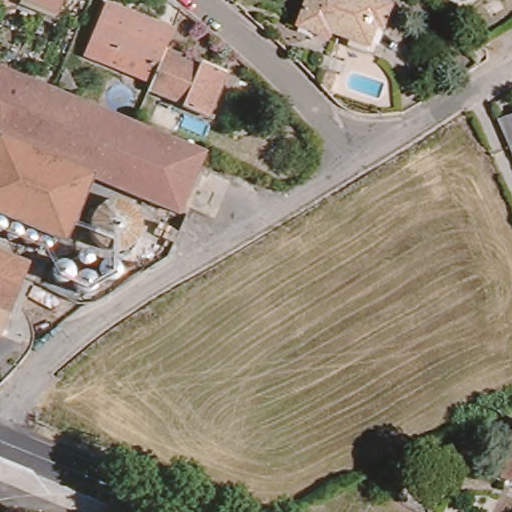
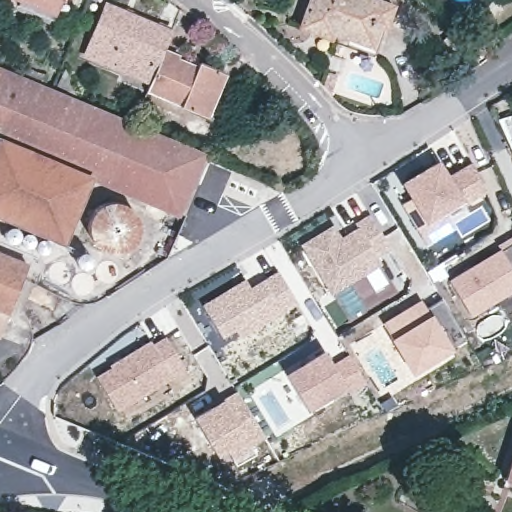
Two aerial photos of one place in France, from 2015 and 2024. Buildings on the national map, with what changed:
unchanged [(51,21),(17,8),(20,0),(59,0),(51,21)]
unchanged [(377,30),(371,29),(363,46),(323,29),(319,35),(310,32),(310,27),(293,20),(302,0),(372,0),(386,6),(377,30)]
unchanged [(103,1),(170,27),(162,47),(154,65),(87,38),(103,1)]
unchanged [(197,113),(176,104),(178,99),(145,87),(154,65),(162,47),(177,53),(177,57),(193,65),(198,60),(224,71),(216,91),(207,116),(197,113)]
unchanged [(177,218),(171,216),(78,176),(53,241),(0,219),(0,71),(89,108),(197,153),(204,156),(177,218)]
new [(436,163),(446,179),(470,164),(483,193),(462,205),(460,200),(425,222),(402,184),(436,163)]
unchanged [(83,215),(86,209),(92,204),(99,200),(110,199),(120,202),(127,207),(134,218),(135,227),(131,239),(125,246),(116,251),(110,252),(102,252),(92,247),(87,242),(83,235),(81,225),(83,215)]
new [(329,228),(337,240),(355,230),(353,225),(367,216),(387,249),(373,256),(378,264),(328,294),(299,246),(329,228)]
new [(48,252),(0,233),(0,219),(53,241),(48,252)]
new [(498,245),(512,237),(512,290),(469,315),(449,281),(494,254),(501,250),(498,245)]
unchanged [(103,281),(99,280),(95,278),(93,272),(93,267),(95,263),(99,260),(103,259),(108,260),(113,264),(114,269),(113,273),(112,277),(108,280),(103,281)]
unchanged [(24,270),(0,327),(0,261),(24,270)]
unchanged [(50,277),(51,273),(51,270),(54,266),(58,264),(63,263),(68,265),(71,269),(72,275),(71,278),(68,283),(63,285),(60,285),(56,283),(52,280),(50,277)]
new [(204,305),(245,278),(249,286),(277,269),(299,304),(242,339),(235,329),(223,336),(204,305)]
unchanged [(86,296),(80,296),(76,294),(73,288),(73,285),(75,279),(78,276),(83,274),(88,275),(92,278),(95,282),(94,287),(92,293),(86,296)]
new [(421,301),(425,307),(417,313),(441,298),(466,339),(412,371),(383,324),(413,306),(421,301)]
new [(111,368),(109,366),(150,341),(153,345),(165,337),(183,366),(170,373),(172,376),(116,410),(96,378),(111,368)]
new [(322,351),(331,366),(344,357),(360,383),(343,393),(339,388),(302,411),(281,377),(322,351)]
new [(237,390),(265,437),(251,446),(256,454),(237,465),(231,457),(227,450),(218,456),(192,416),(237,390)]
unchanged [(512,437),(512,483),(497,478),(512,437)]

